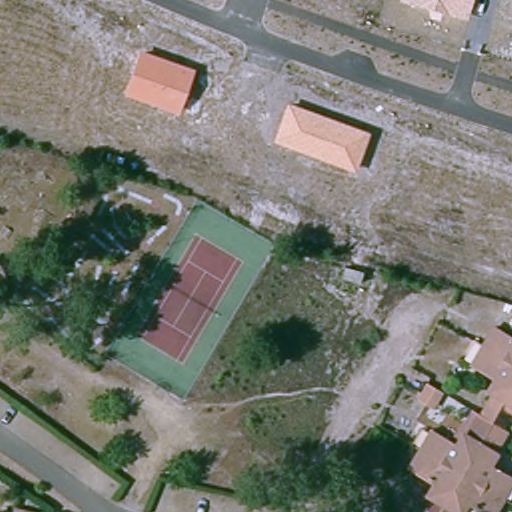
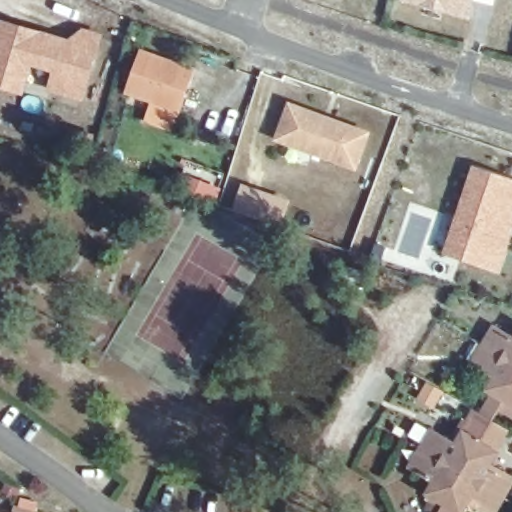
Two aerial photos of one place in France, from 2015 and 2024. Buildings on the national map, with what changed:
unchanged [(473,0),(467,21),(405,0),(473,0)]
new [(70,38),(83,26),(103,32),(84,100),(46,91),(52,71),(31,65),(22,94),(0,87),(0,20),(0,18),(70,38)]
unchanged [(140,52),(195,70),(180,111),(124,93),(140,52)]
unchanged [(275,140),(286,105),(370,133),(355,171),(275,140)]
new [(510,182),(512,182),(512,227),(508,239),(497,270),(481,265),(447,252),(451,240),(475,170),(510,182)]
new [(279,226),(264,220),(236,209),(245,186),(273,197),(288,202),(279,226)]
unchanged [(489,376),(470,366),(462,361),(482,325),(490,328),(507,337),(512,328),(512,421),(508,429),(489,420),(475,412),(486,392),(483,390),(489,376)]
unchanged [(411,405),(403,419),(389,412),(396,397),(411,405)]
unchanged [(472,509),(471,512),(437,512),(425,506),(432,491),(417,483),(407,478),(423,440),(433,444),(449,452),(454,440),(452,438),(463,415),(506,436),(488,472),(512,482),(512,485),(504,502),(499,512),(479,512),(472,509)]
unchanged [(14,500),(39,507),(38,512),(11,512),(14,500)]

